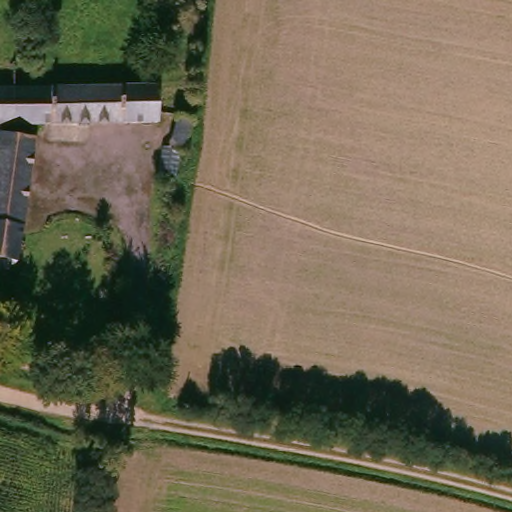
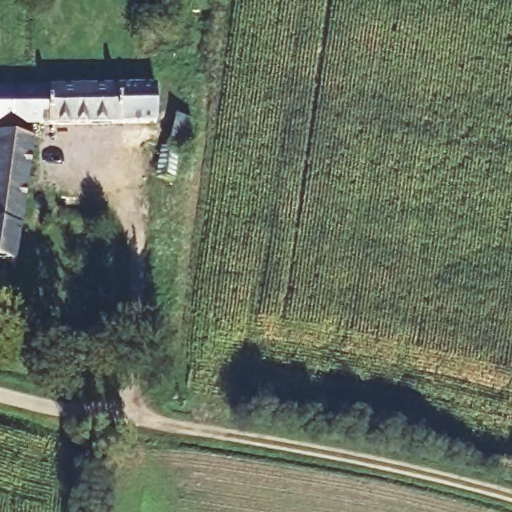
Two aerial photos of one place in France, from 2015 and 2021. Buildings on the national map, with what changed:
unchanged [(155,88),(156,123),(0,126),(0,89),(21,89),(155,88)]
unchanged [(163,148),(169,149),(177,118),(189,121),(183,152),(178,152),(170,178),(156,174),(163,148)]
unchanged [(15,259),(0,273),(0,136),(35,141),(15,259)]

